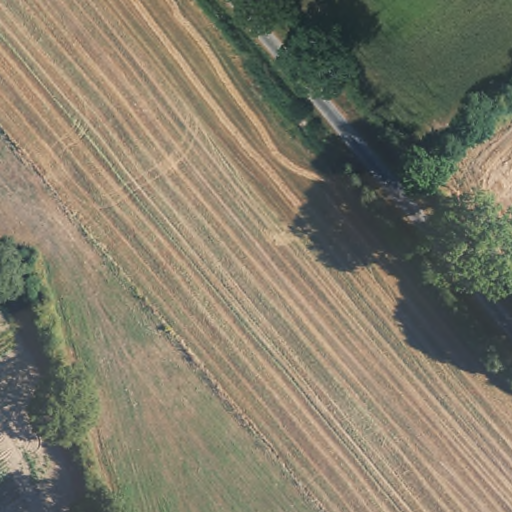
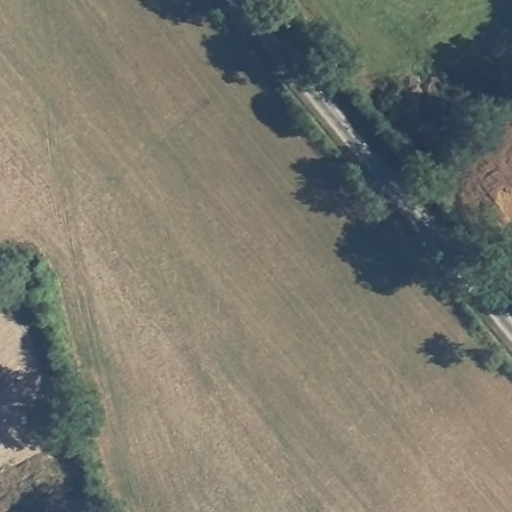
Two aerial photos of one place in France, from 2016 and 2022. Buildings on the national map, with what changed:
[]

